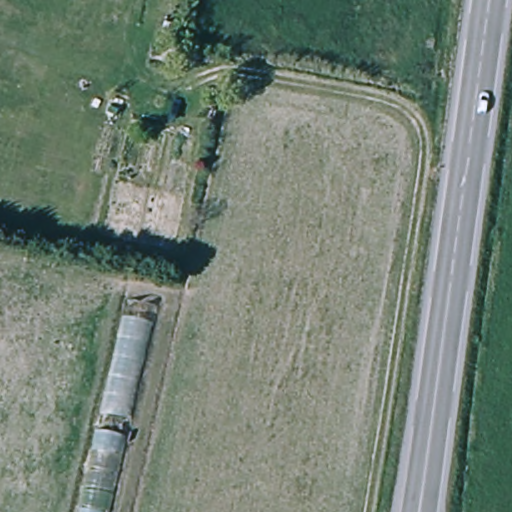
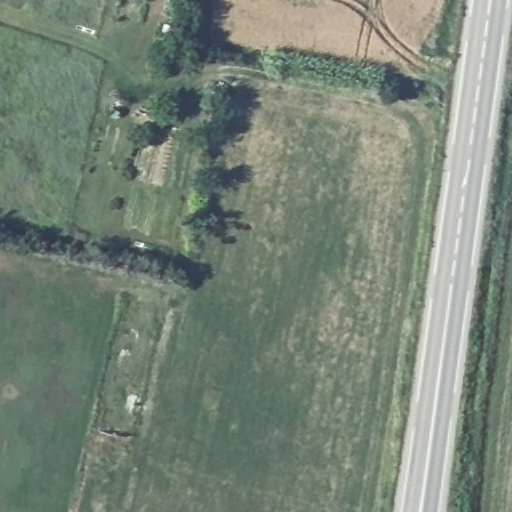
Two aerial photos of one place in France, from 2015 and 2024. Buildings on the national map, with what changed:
demolished [(167,297),(113,512),(80,512),(134,288),(167,297)]

